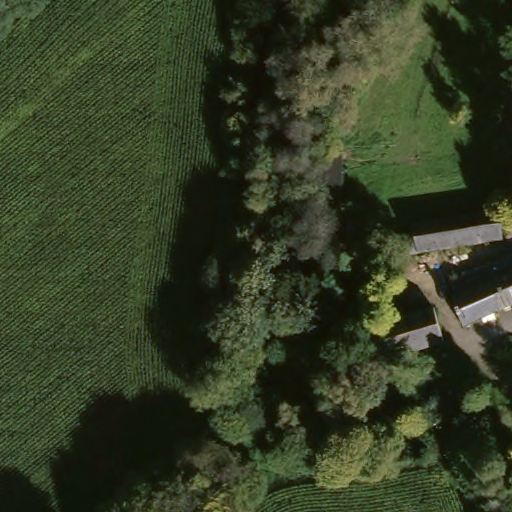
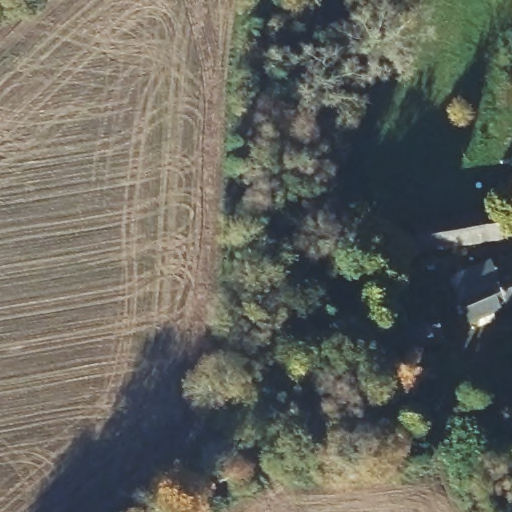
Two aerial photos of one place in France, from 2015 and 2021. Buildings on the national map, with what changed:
unchanged [(389,238),(384,225),(478,213),(512,210),(512,239),(481,243),(369,259),(366,240),(389,238)]
unchanged [(358,218),(355,257),(326,256),(328,214),(358,218)]
unchanged [(488,266),(512,256),(512,301),(505,304),(488,266)]
unchanged [(496,307),(500,317),(483,324),(477,316),(460,326),(448,295),(450,284),(488,266),(505,304),(496,307)]
unchanged [(383,320),(430,308),(439,341),(392,357),(383,320)]

